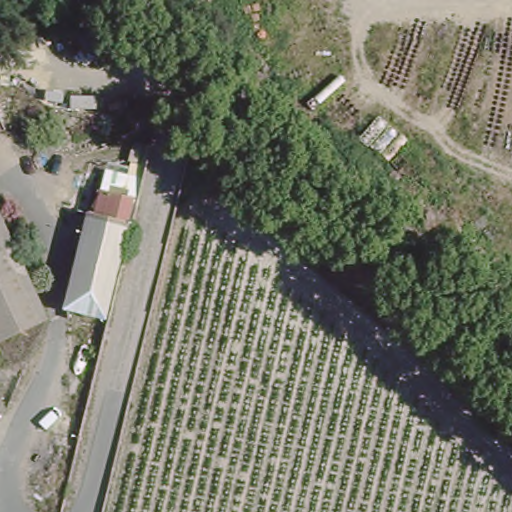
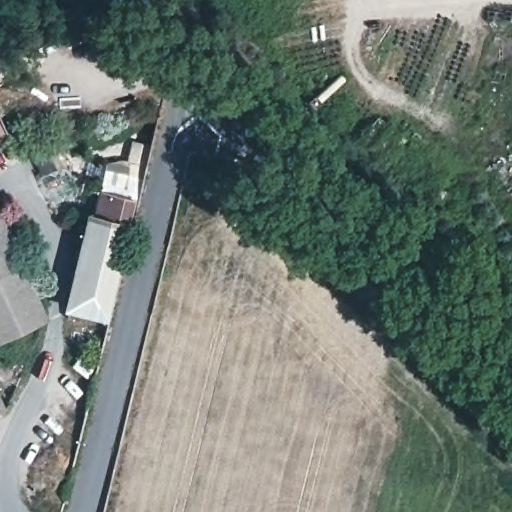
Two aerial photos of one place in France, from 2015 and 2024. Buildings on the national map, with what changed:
unchanged [(131,202),(94,194),(96,187),(103,190),(105,181),(135,189),(131,202)]
unchanged [(82,220),(88,221),(94,196),(123,203),(117,228),(103,283),(69,275),(82,220)]
unchanged [(48,319),(0,340),(0,205),(48,319)]
unchanged [(69,275),(103,283),(95,320),(60,311),(69,275)]

